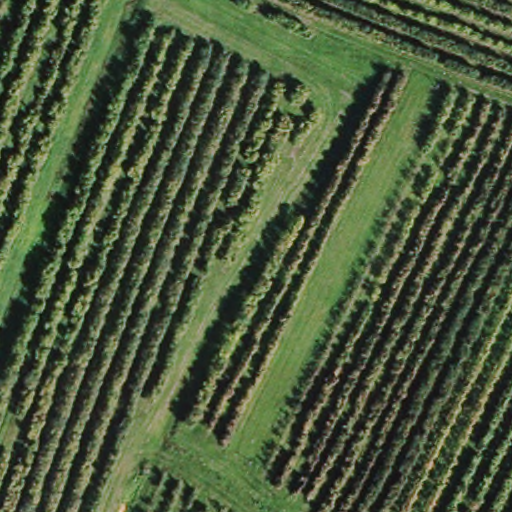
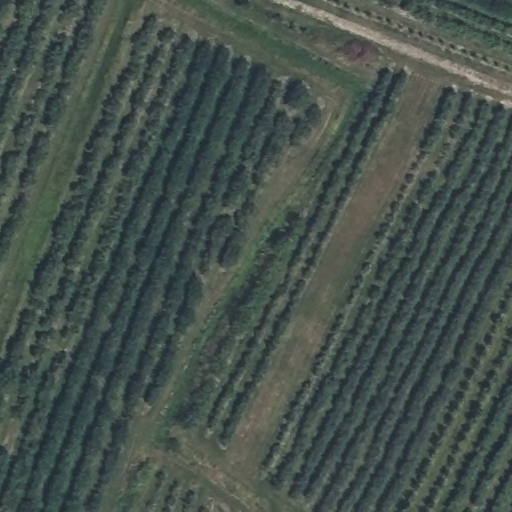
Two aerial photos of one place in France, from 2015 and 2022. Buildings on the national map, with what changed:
[]

